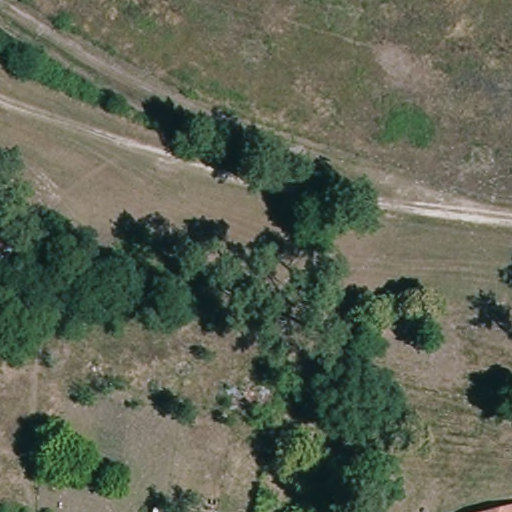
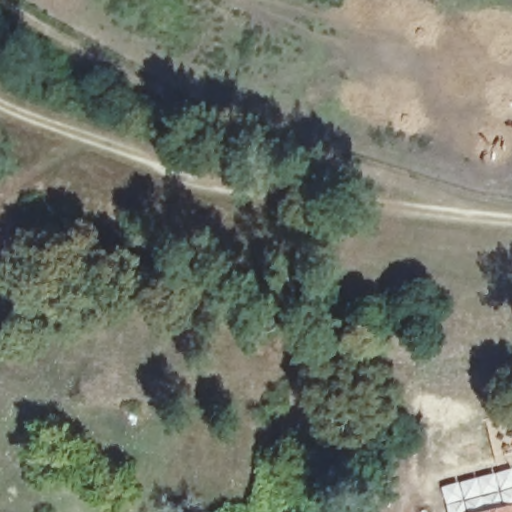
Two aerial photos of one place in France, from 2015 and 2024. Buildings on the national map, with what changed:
unchanged [(512,511),(512,512),(507,512),(512,511)]

